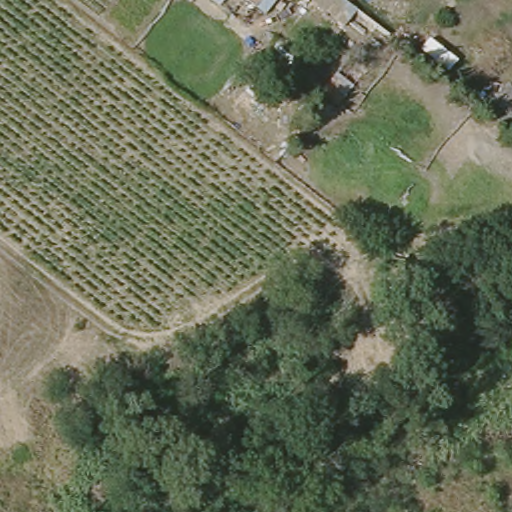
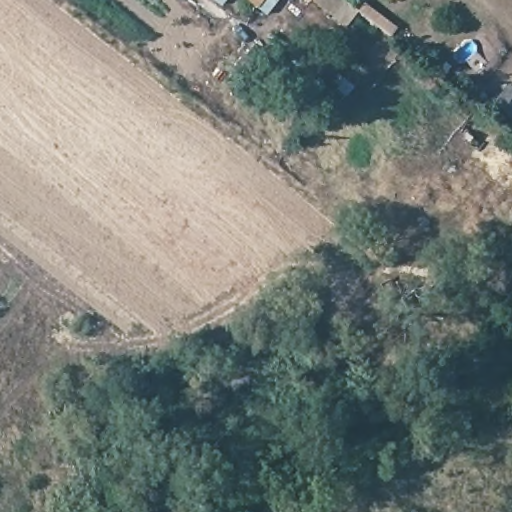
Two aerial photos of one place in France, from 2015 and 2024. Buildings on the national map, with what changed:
unchanged [(258,13),(242,0),(267,0),(258,13)]
unchanged [(345,26),(309,0),(343,0),(355,9),(345,26)]
unchanged [(313,98),(339,64),(349,52),(367,68),(352,89),(334,114),(313,98)]

